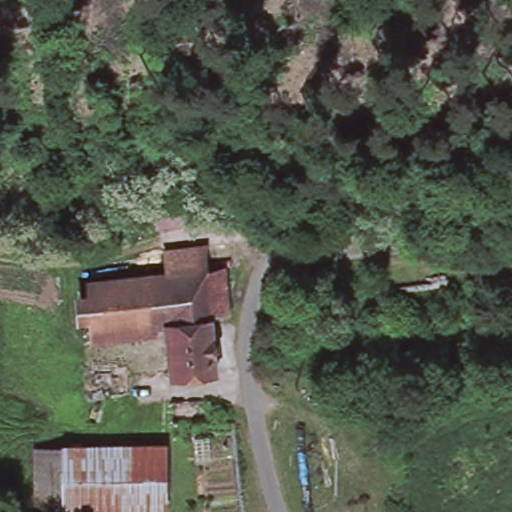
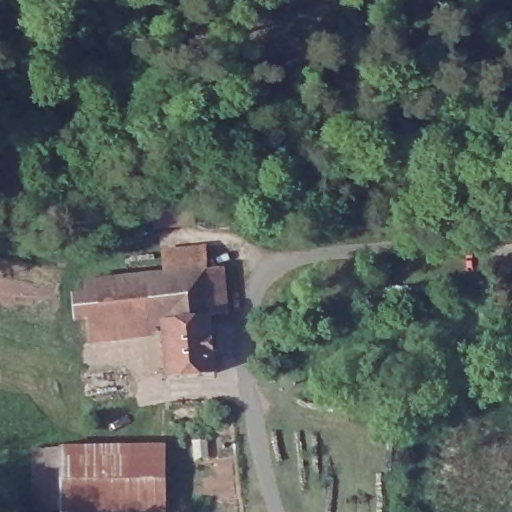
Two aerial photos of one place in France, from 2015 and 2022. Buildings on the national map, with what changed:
unchanged [(165,278),(163,252),(206,246),(215,282),(227,282),(227,319),(214,319),(212,380),(165,380),(164,335),(82,337),(82,329),(85,280),(165,278)]
unchanged [(147,510),(73,512),(49,512),(49,451),(145,448),(147,510)]

